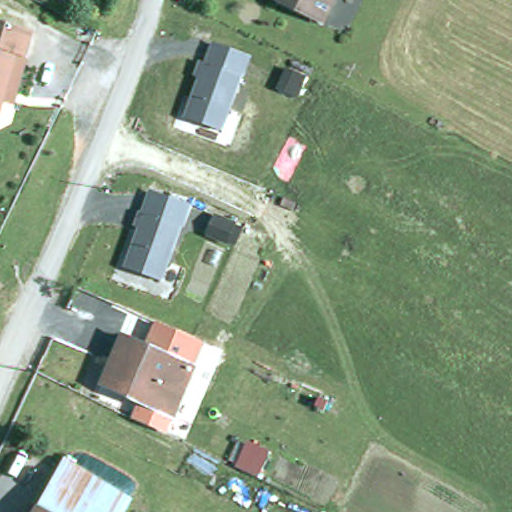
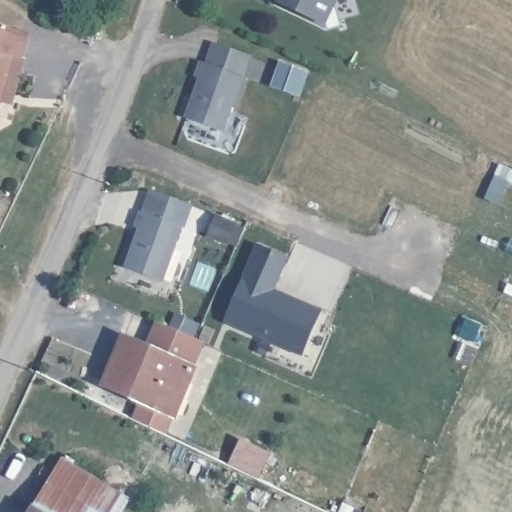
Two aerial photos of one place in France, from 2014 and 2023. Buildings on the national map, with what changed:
unchanged [(283,6),(286,0),(336,0),(325,24),(283,6)]
unchanged [(12,56),(0,100),(0,27),(26,34),(20,58),(12,56)]
unchanged [(252,56),(224,131),(183,117),(198,78),(193,76),(198,61),(205,63),(212,42),(252,56)]
unchanged [(193,204),(185,228),(183,227),(162,281),(124,267),(138,228),(133,226),(138,210),(142,211),(150,190),(193,204)]
new [(288,257),(275,290),(323,310),(303,357),(224,323),(258,244),(288,257)]
unchanged [(157,321),(205,341),(195,365),(172,356),(146,345),(157,321)]
unchanged [(195,365),(165,435),(139,423),(148,403),(101,384),(122,335),(127,337),(172,356),(195,365)]
unchanged [(128,497),(120,512),(33,512),(64,459),(128,497)]

